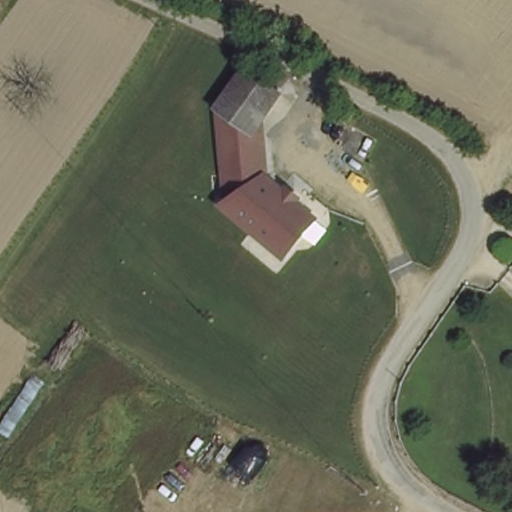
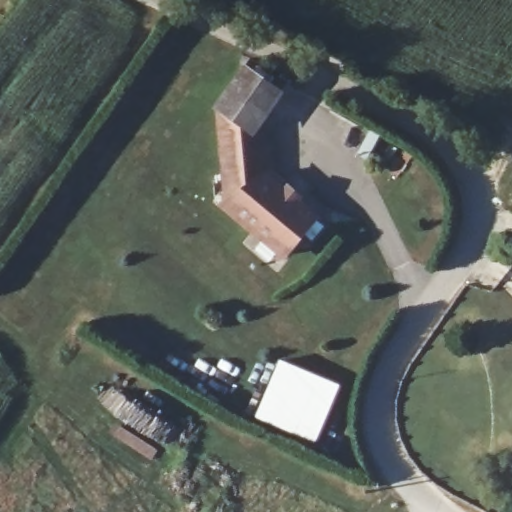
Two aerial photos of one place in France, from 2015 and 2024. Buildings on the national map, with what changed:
unchanged [(276,90),(251,129),(261,137),(266,174),(285,189),(288,185),(299,193),(296,197),(317,214),(286,253),(261,228),(258,231),(227,201),(215,106),(242,68),(276,90)]
new [(339,387),(315,442),(255,418),(278,361),(339,387)]

